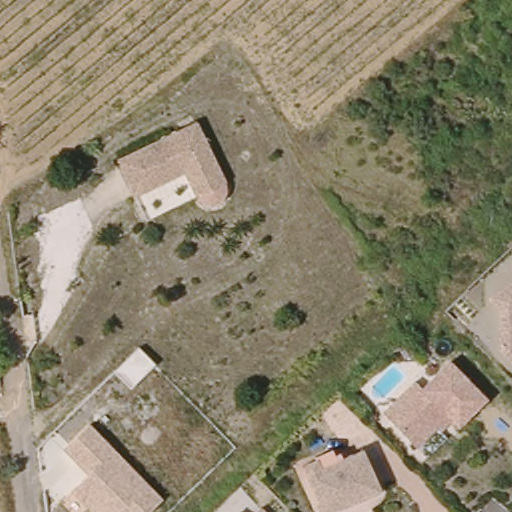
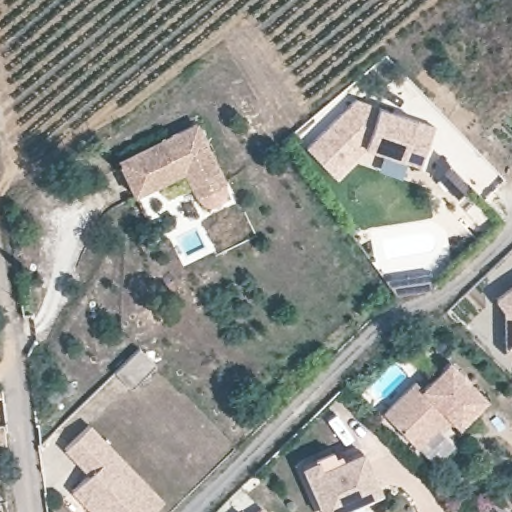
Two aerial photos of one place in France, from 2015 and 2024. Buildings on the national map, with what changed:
new [(355,98),(379,106),(417,121),(436,126),(421,166),(404,160),(366,147),(336,176),(308,148),(355,98)]
unchanged [(183,127),(202,119),(207,131),(229,179),(229,180),(229,181),(230,182),(230,184),(230,185),(230,186),(230,187),(230,189),(230,190),(230,191),(229,192),(229,193),(228,194),(228,195),(227,195),(226,196),(226,197),(225,198),(224,199),(223,199),(222,200),(221,200),(220,200),(219,200),(218,201),(217,201),(216,201),(215,201),(214,201),(213,200),(212,200),(210,200),(209,200),(208,199),(207,198),(206,197),(205,196),(204,196),(204,195),(203,194),(202,194),(202,192),(201,192),(189,167),(139,190),(123,155),(183,127)]
unchanged [(503,293),(512,286),(512,345),(512,305),(503,293)]
unchanged [(130,390),(114,372),(139,348),(156,365),(130,390)]
unchanged [(439,422),(418,442),(384,408),(416,376),(423,384),(451,356),(488,395),(460,422),(453,415),(442,426),(439,422)]
unchanged [(91,512),(72,491),(88,476),(65,450),(90,425),(164,500),(150,512),(91,512)]
unchanged [(326,510),(322,501),(305,462),(319,455),(335,448),(339,457),(366,446),(379,481),(381,486),(326,510)]
unchanged [(276,512),(258,512),(267,503),(276,512)]
unchanged [(252,512),(242,512),(247,507),(252,512)]

